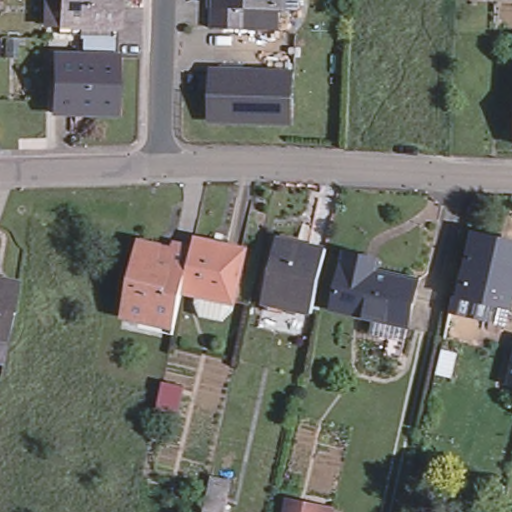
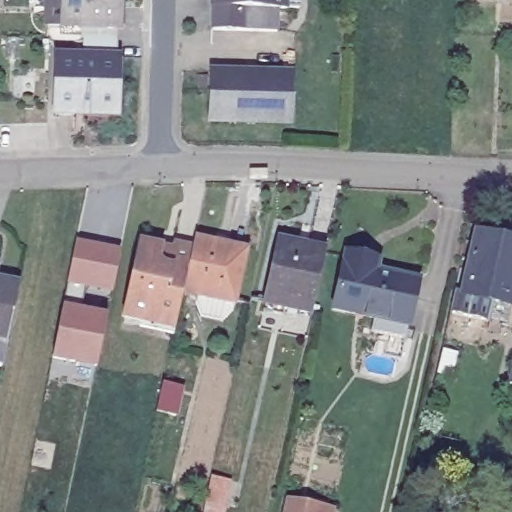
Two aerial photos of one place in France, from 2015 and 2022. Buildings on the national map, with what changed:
unchanged [(81,44),(81,29),(45,28),(45,0),(113,0),(113,27),(116,27),(116,30),(116,45),(116,58),(114,118),(53,116),(54,57),(80,58),(81,44)]
unchanged [(299,6),(251,5),(251,28),(213,27),(213,0),(299,0),(299,6)]
unchanged [(289,70),(288,120),(209,117),(211,67),(289,70)]
unchanged [(512,273),(511,273),(502,308),(448,295),(450,287),(453,274),(462,276),(476,219),(512,228),(512,273)]
unchanged [(276,237),(324,248),(309,312),(262,301),(276,237)]
new [(120,248),(112,293),(85,287),(79,309),(108,314),(96,370),(52,361),(63,306),(67,283),(76,240),(120,248)]
unchanged [(191,250),(193,240),(244,252),(232,305),(181,293),(191,250)]
unchanged [(137,322),(121,318),(138,245),(159,249),(156,262),(161,269),(168,271),(173,246),(191,250),(181,293),(176,318),(174,322),(171,337),(136,329),(137,322)]
unchanged [(371,330),(374,316),(331,306),(343,252),(376,259),(374,270),(416,279),(406,323),(403,337),(371,330)]
unchanged [(0,371),(0,290),(18,293),(6,351),(3,371),(0,371)]
unchanged [(509,339),(512,340),(512,391),(497,389),(502,370),(508,345),(509,339)]
unchanged [(161,382),(181,387),(174,416),(155,413),(161,382)]
unchanged [(333,512),(278,512),(283,491),(336,497),(333,512)]

